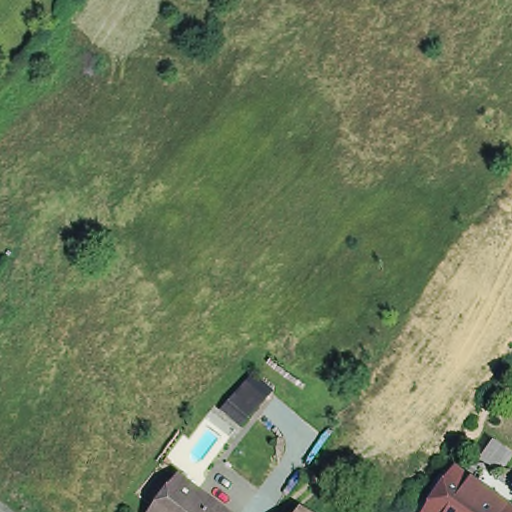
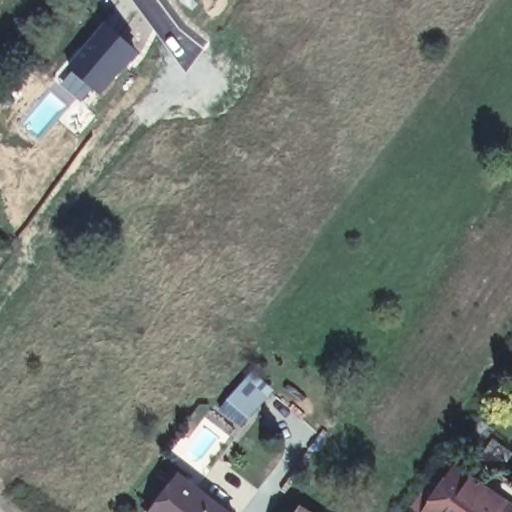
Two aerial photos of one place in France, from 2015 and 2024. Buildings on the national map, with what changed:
new [(138,51),(101,95),(69,66),(105,24),(138,51)]
unchanged [(224,408),(239,390),(257,405),(243,422),(224,408)]
unchanged [(232,510),(236,512),(153,512),(178,474),(232,510)]
unchanged [(474,480),(508,505),(505,510),(507,512),(424,512),(450,475),(469,487),(474,480)]

